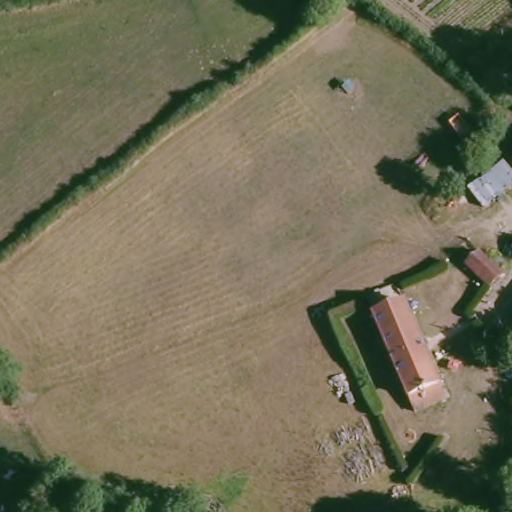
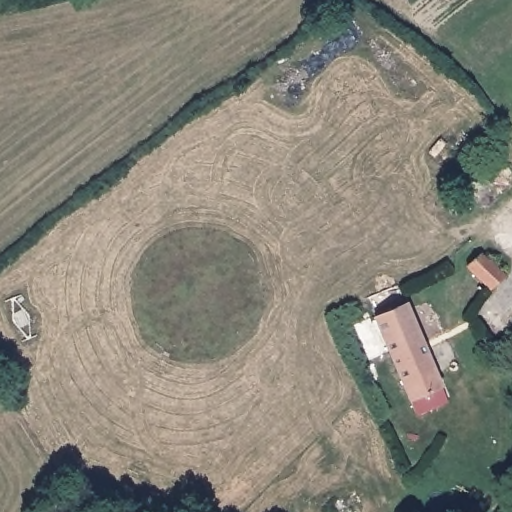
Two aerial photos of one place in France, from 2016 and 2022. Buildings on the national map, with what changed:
unchanged [(485,250),(507,271),(493,287),(470,264),(481,254),(485,250)]
unchanged [(421,342),(434,372),(442,393),(411,406),(369,308),(401,294),(421,342)]
unchanged [(65,509),(71,512),(62,512),(65,509)]

